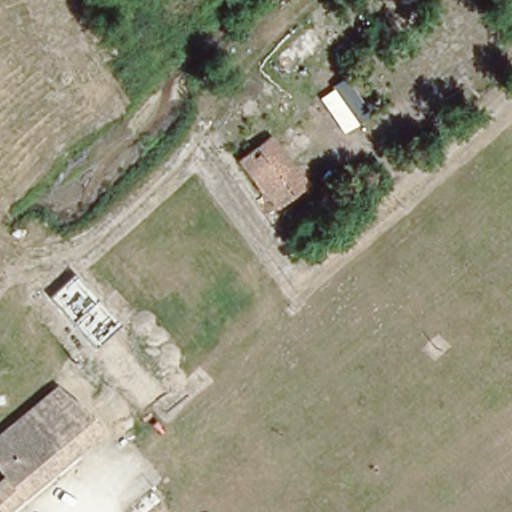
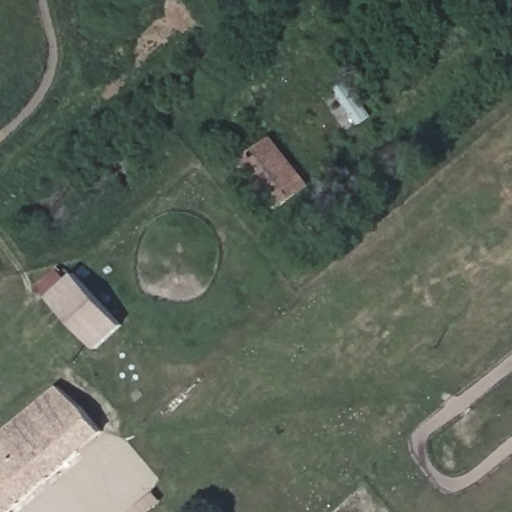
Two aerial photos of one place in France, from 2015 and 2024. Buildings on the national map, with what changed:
unchanged [(278,212),(238,164),(270,139),(308,188),(278,212)]
new [(47,296),(71,273),(114,321),(90,345),(47,296)]
unchanged [(0,469),(0,438),(61,387),(84,407),(105,430),(13,512),(0,512),(0,487),(9,480),(0,469)]

